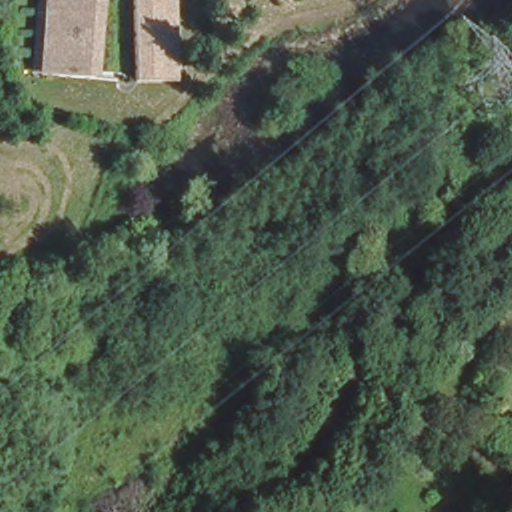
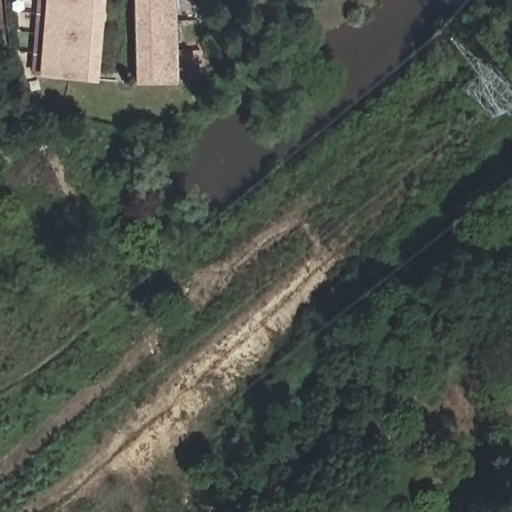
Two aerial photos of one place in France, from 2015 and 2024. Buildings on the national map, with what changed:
unchanged [(39,75),(40,61),(32,61),(34,46),(41,47),(44,22),(36,21),(37,6),(45,8),(46,0),(99,0),(91,80),(39,75)]
unchanged [(134,84),(133,0),(169,0),(171,83),(134,84)]

